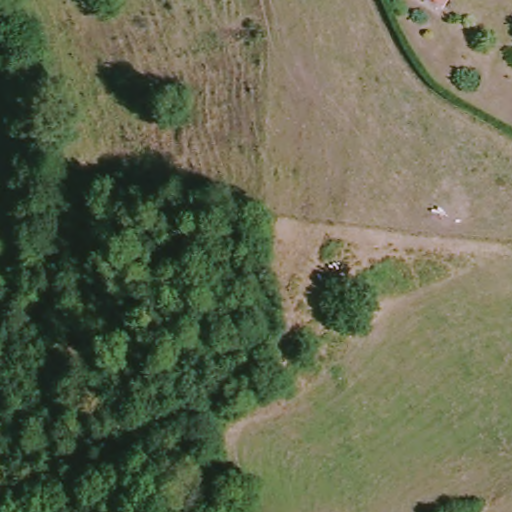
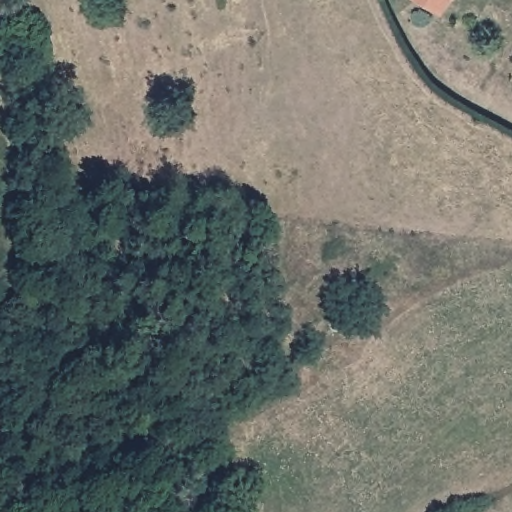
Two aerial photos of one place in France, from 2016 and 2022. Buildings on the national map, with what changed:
unchanged [(422,0),(455,0),(446,16),(422,0)]

